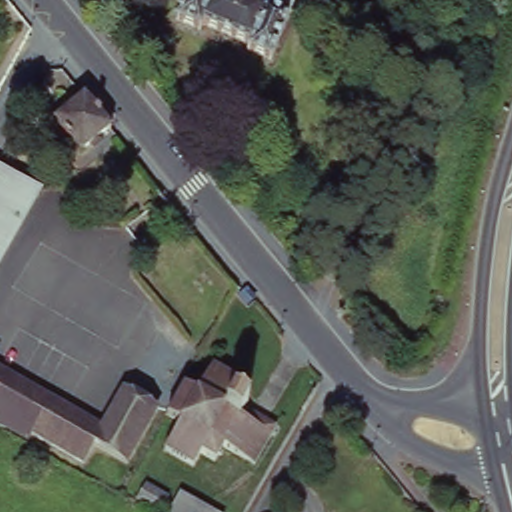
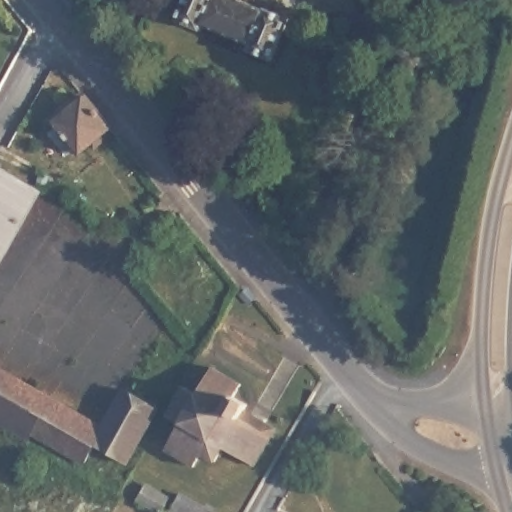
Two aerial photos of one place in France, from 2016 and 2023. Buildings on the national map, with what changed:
unchanged [(272,7),(297,17),(281,61),(255,51),(257,44),(211,27),(209,32),(184,22),(192,0),(242,0),(271,12),(272,7)]
unchanged [(76,152),(48,115),(81,91),(111,127),(76,152)]
unchanged [(0,264),(0,170),(3,165),(43,187),(0,264)]
unchanged [(131,384),(167,403),(136,457),(104,440),(94,460),(42,432),(39,438),(0,418),(0,413),(1,412),(0,411),(0,362),(110,422),(131,384)]
unchanged [(245,381),(238,391),(250,398),(247,403),(277,422),(258,456),(228,437),(222,446),(220,443),(217,448),(208,443),(202,456),(173,442),(188,413),(176,407),(190,380),(201,387),(216,363),(245,381)]
unchanged [(170,500),(164,512),(156,512),(139,503),(148,488),(170,500)]
unchanged [(212,512),(174,512),(183,497),(212,512)]

